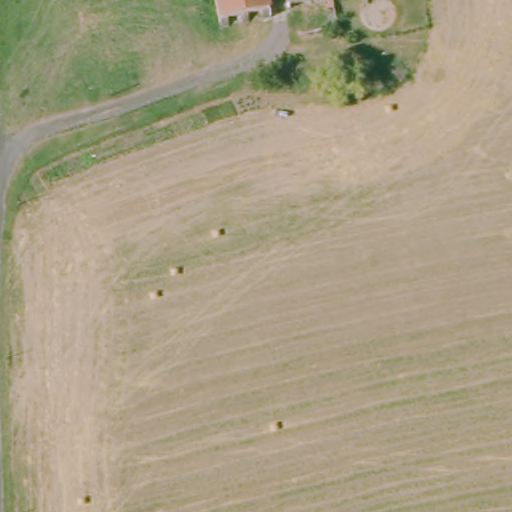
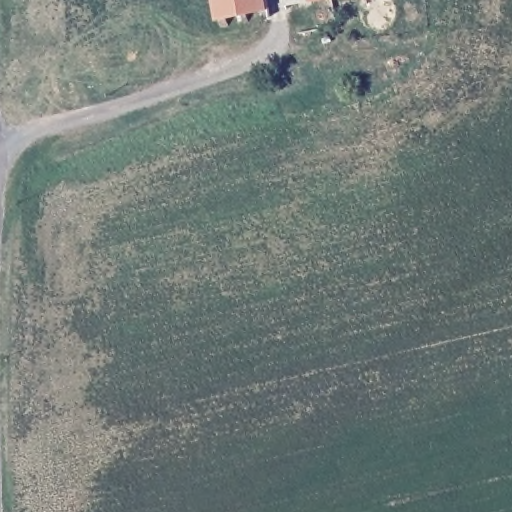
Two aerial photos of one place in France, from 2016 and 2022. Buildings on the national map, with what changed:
unchanged [(266,21),(264,12),(255,14),(256,22),(243,25),(242,16),(231,17),(233,27),(224,29),(219,0),(273,0),(277,20),(266,21)]
unchanged [(289,0),(315,0),(315,1),(290,6),(289,0)]
unchanged [(315,0),(321,0),(315,1),(315,0)]

